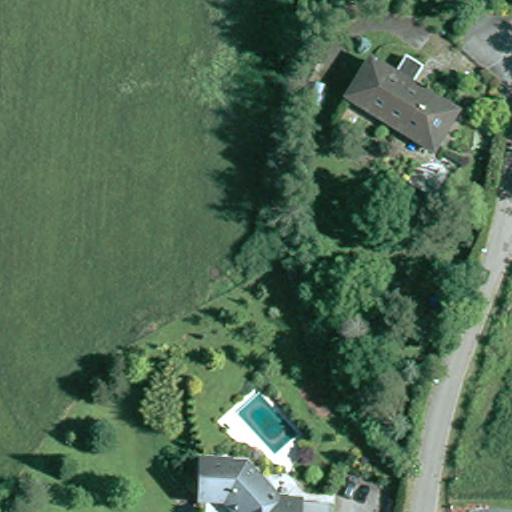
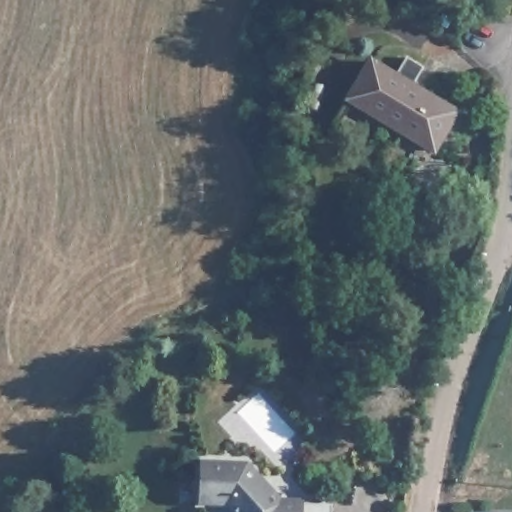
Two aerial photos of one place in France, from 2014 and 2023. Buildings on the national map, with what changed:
unchanged [(435,154),(348,100),(372,60),(457,114),(435,154)]
unchanged [(209,502),(209,491),(203,490),(204,473),(210,472),(210,462),(245,463),(282,501),(336,505),(336,512),(238,512),(230,503),(209,502)]

